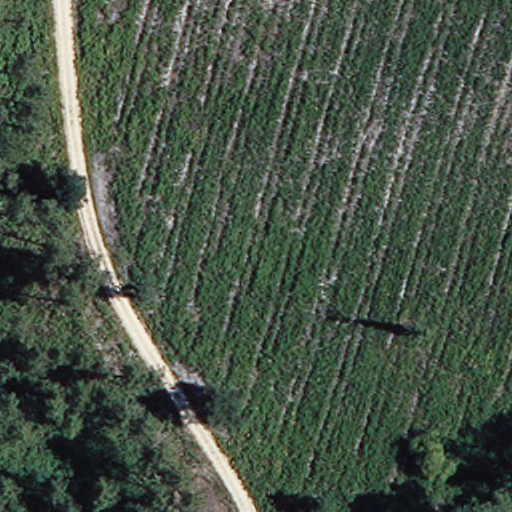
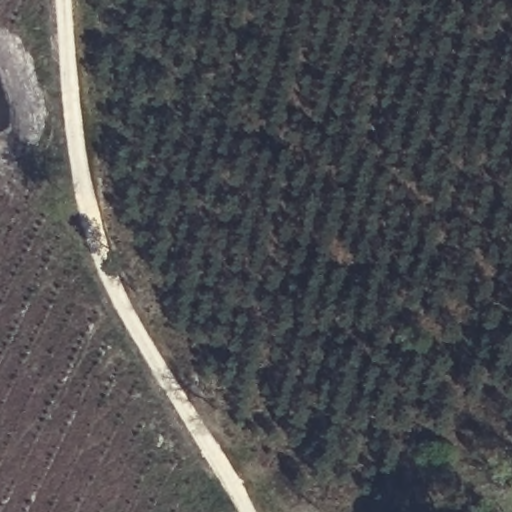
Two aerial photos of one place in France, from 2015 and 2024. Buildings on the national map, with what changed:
[]

